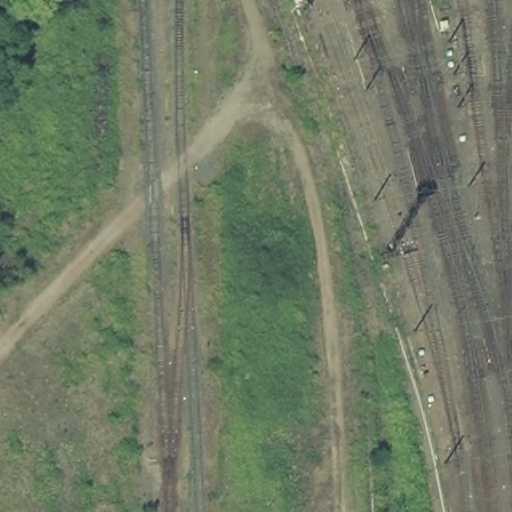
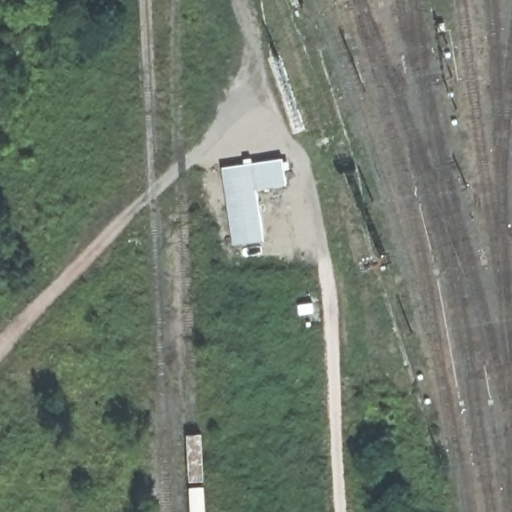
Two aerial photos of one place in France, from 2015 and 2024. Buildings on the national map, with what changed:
new [(287,184),(257,188),(265,240),(235,244),(223,167),(283,159),(287,184)]

